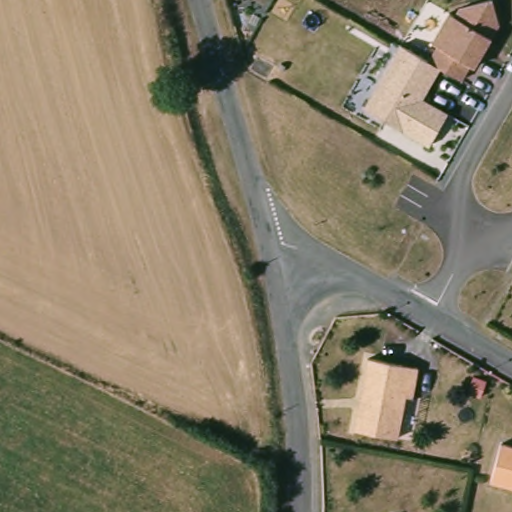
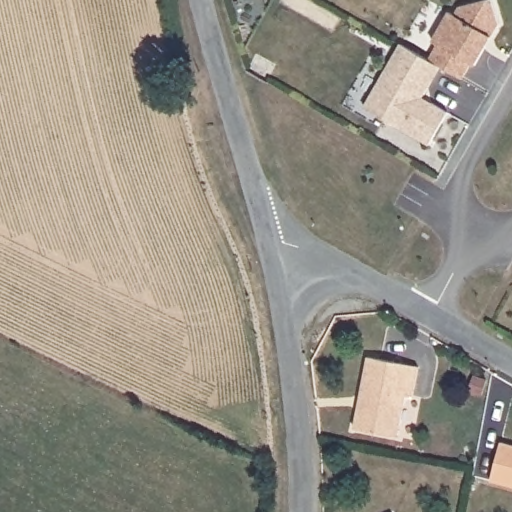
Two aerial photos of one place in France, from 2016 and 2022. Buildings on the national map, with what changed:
unchanged [(431,59),(439,48),(433,42),(452,10),(461,12),(459,5),(482,0),(495,0),(504,29),(495,33),(465,80),(445,65),(427,95),(454,111),(432,147),(362,105),(403,40),(431,59)]
unchanged [(351,430),(364,359),(414,369),(409,399),(402,397),(394,439),(351,430)]
unchanged [(486,479),(495,440),(512,445),(512,486),(486,479)]

